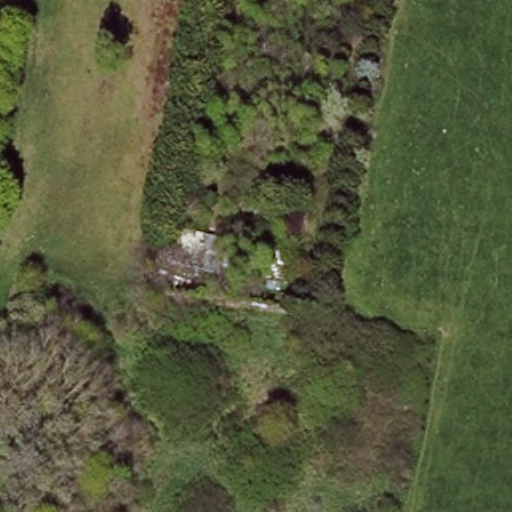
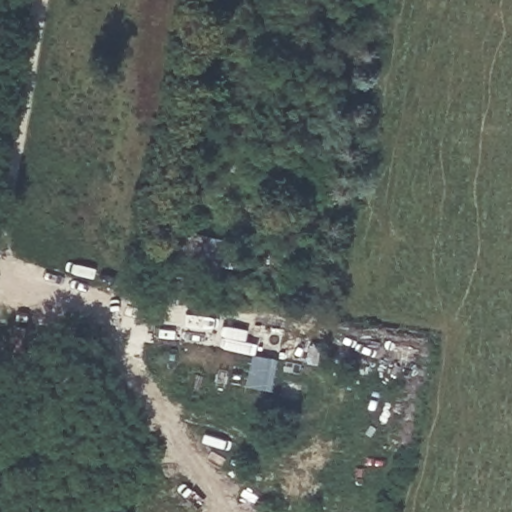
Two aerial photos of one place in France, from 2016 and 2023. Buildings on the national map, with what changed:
unchanged [(219,268),(217,274),(160,265),(165,229),(230,239),(227,253),(264,261),(267,248),(291,252),(286,281),(219,268)]
new [(255,356),(277,360),(272,389),(250,385),(255,356)]

